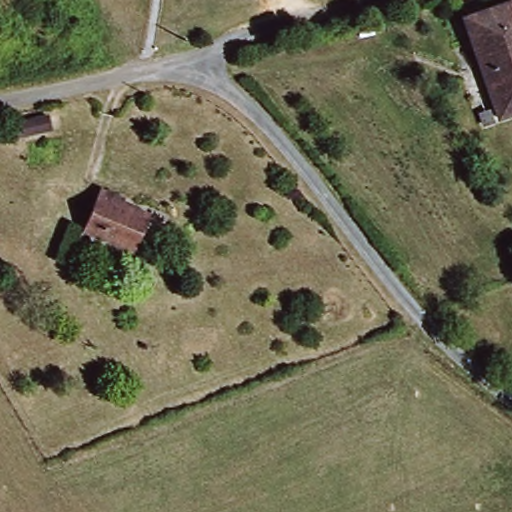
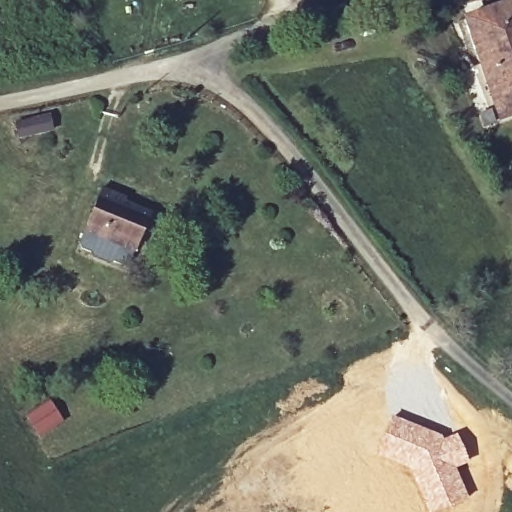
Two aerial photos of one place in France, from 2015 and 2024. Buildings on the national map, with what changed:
unchanged [(512,2),(512,117),(504,120),(467,19),(512,2)]
unchanged [(13,122),(50,117),(53,135),(16,143),(13,122)]
unchanged [(103,195),(154,212),(139,252),(88,230),(103,195)]
new [(49,402),(63,424),(45,435),(31,414),(49,402)]
new [(444,436),(444,437),(457,432),(471,462),(457,468),(469,497),(436,512),(428,512),(410,471),(376,455),(392,415),(444,436)]

